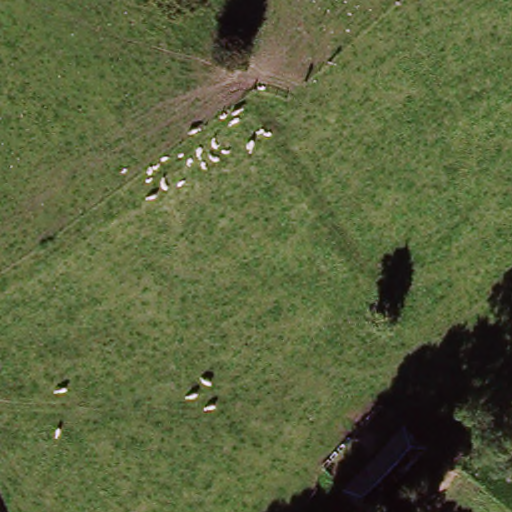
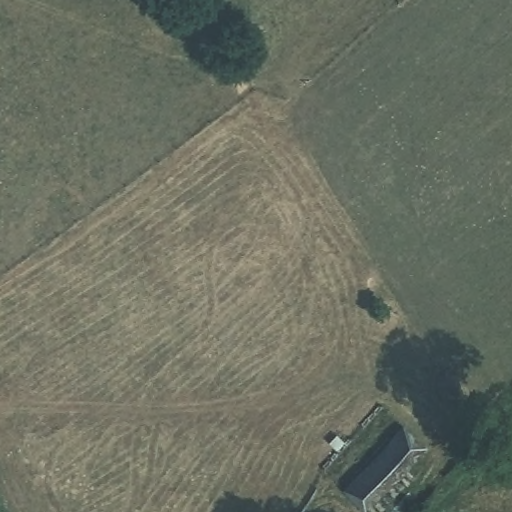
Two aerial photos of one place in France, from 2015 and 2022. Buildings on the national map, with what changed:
unchanged [(343,491),(403,422),(424,441),(365,510),(343,491)]

